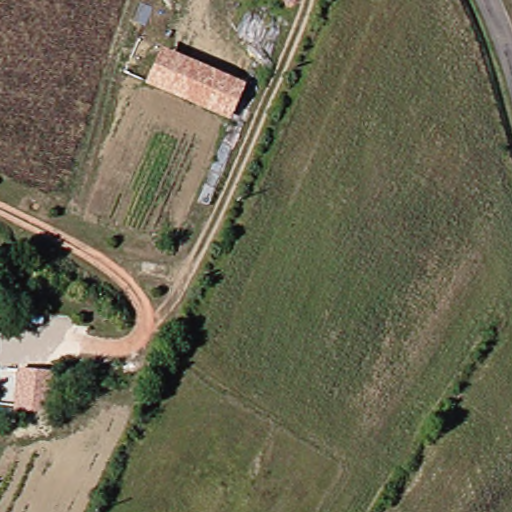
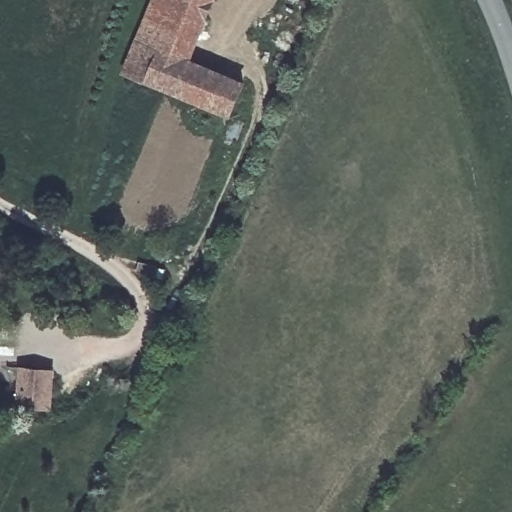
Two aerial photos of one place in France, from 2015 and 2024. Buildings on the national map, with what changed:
new [(154,0),(165,0),(209,20),(191,60),(162,46),(144,85),(121,74),(154,0)]
new [(165,0),(217,0),(209,20),(165,0)]
unchanged [(244,84),(230,120),(144,85),(162,46),(244,84)]
unchanged [(56,408),(24,407),(25,368),(57,368),(56,408)]

